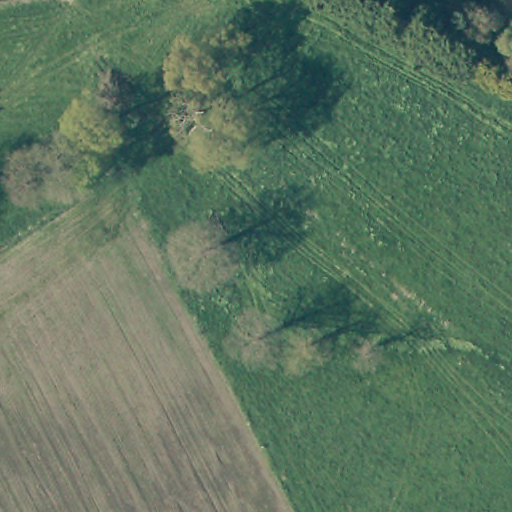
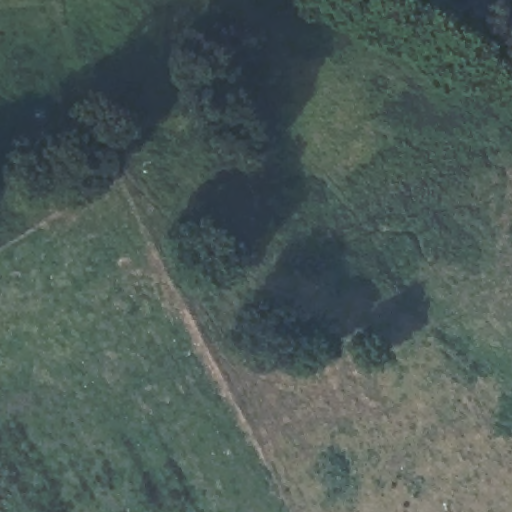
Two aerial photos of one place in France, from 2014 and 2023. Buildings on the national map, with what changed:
[]

